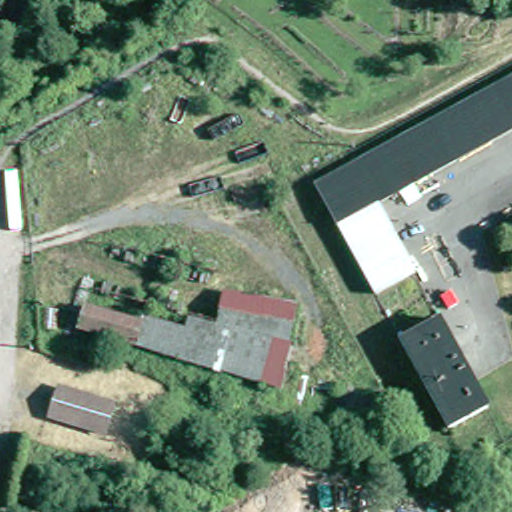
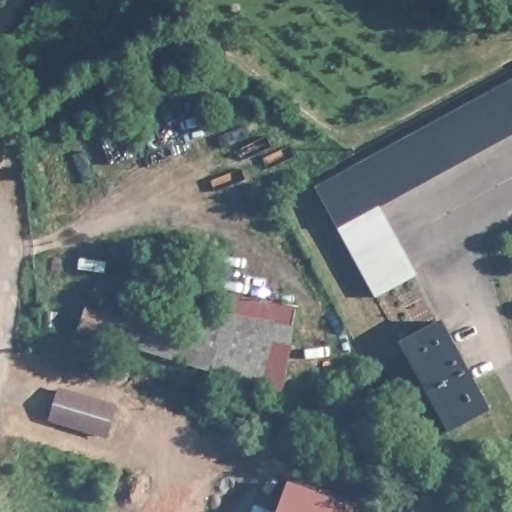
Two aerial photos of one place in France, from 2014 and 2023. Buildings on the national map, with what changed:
unchanged [(321,185),(512,81),(512,133),(383,203),(344,225),(321,185)]
unchanged [(423,273),(382,295),(344,225),(383,203),(423,273)]
unchanged [(153,328),(154,323),(197,335),(201,322),(230,327),(237,298),(305,310),(289,393),(88,333),(96,312),(153,328)]
unchanged [(445,319),(495,409),(455,432),(406,340),(445,319)]
unchanged [(121,405),(113,434),(56,418),(64,389),(121,405)]
new [(289,481),(355,505),(353,512),(277,512),(289,481)]

